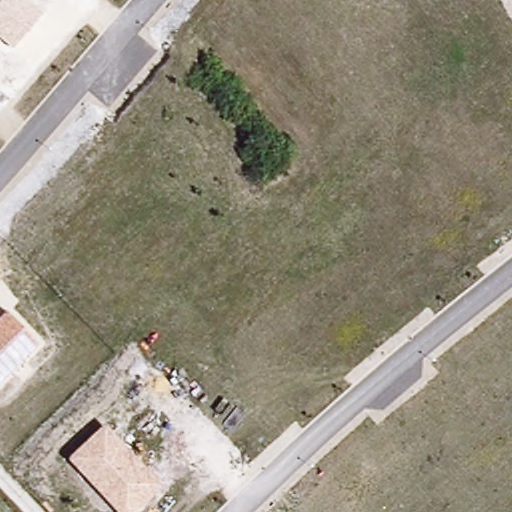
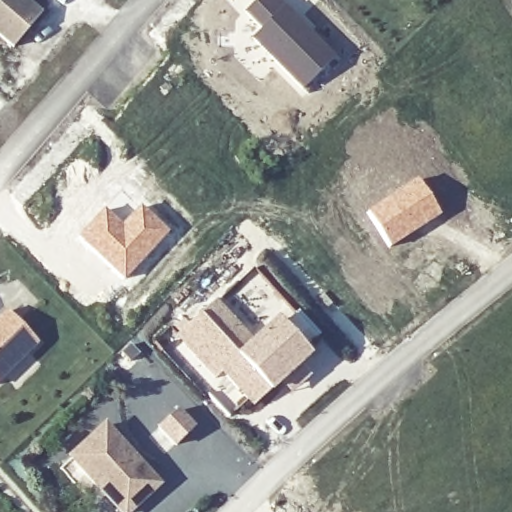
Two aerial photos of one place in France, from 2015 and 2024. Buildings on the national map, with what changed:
unchanged [(12,49),(0,38),(0,0),(30,0),(42,11),(12,49)]
new [(282,0),(306,23),(337,55),(304,89),(252,37),(259,29),(244,13),(258,0),(282,0)]
new [(417,179),(441,215),(391,248),(367,211),(417,179)]
new [(103,209),(121,224),(138,206),(167,233),(123,280),(77,237),(103,209)]
new [(208,299),(247,340),(217,369),(210,375),(171,332),(208,299)]
unchanged [(40,345),(0,383),(0,318),(7,311),(40,345)]
new [(247,340),(273,317),(306,352),(251,404),(217,369),(247,340)]
new [(176,411),(192,429),(177,445),(160,427),(176,411)]
unchanged [(162,487),(136,512),(118,512),(68,458),(104,424),(162,487)]

